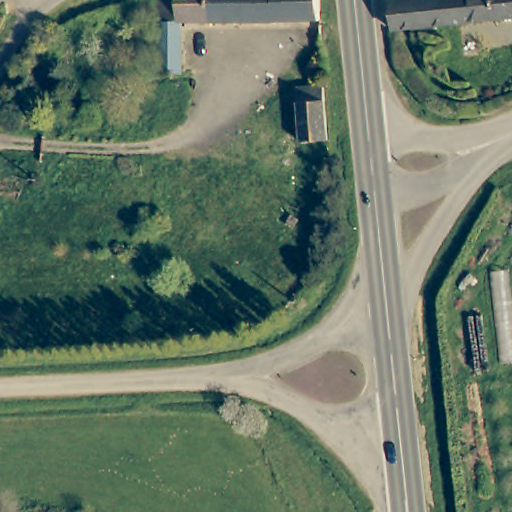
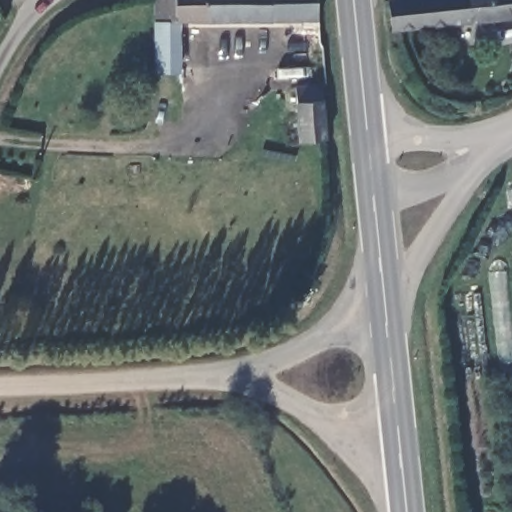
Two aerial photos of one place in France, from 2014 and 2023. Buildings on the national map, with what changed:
unchanged [(315,0),(316,25),(178,28),(154,29),(153,0),(315,0)]
unchanged [(389,8),(441,0),(512,0),(512,19),(395,40),(389,8)]
unchanged [(155,80),(154,29),(178,28),(179,80),(155,80)]
unchanged [(325,141),(298,143),(294,90),(320,86),(325,141)]

